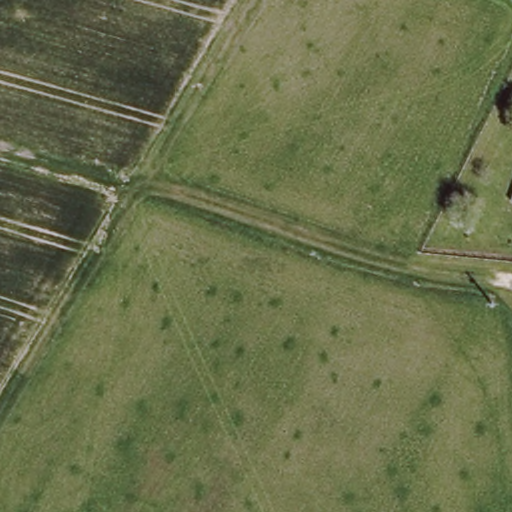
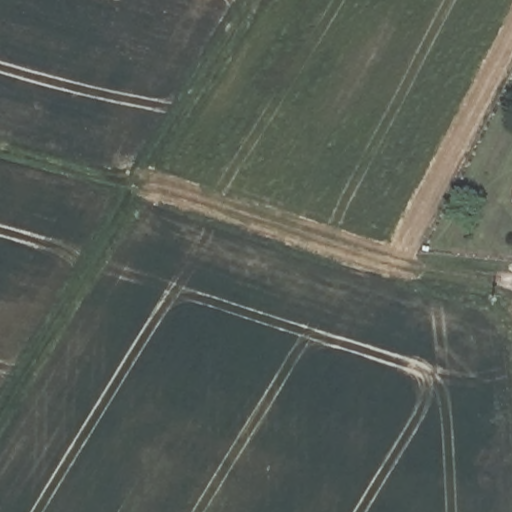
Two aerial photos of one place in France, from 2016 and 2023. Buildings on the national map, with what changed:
unchanged [(495,202),(505,175),(512,177),(512,209),(495,202)]

